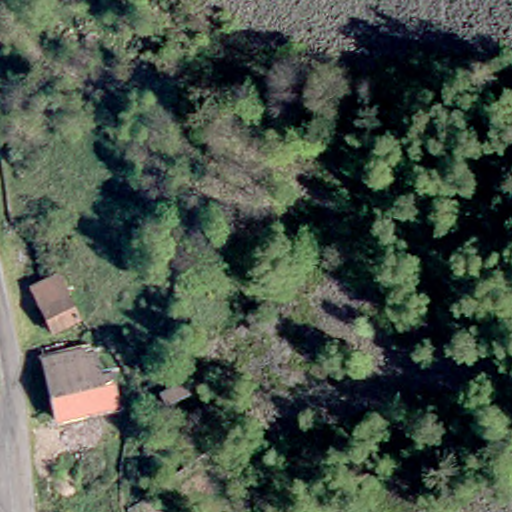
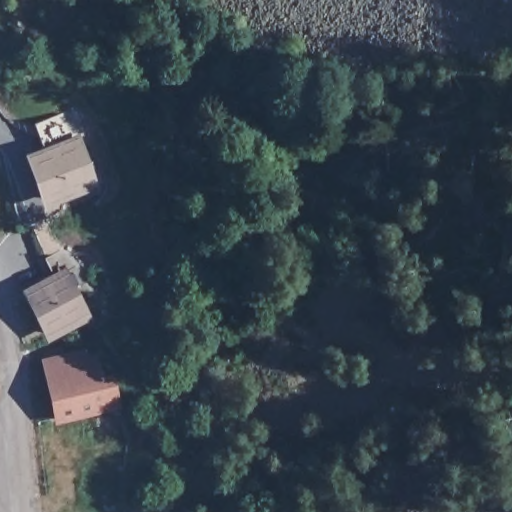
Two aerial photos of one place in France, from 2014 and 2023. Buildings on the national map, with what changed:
new [(48,154),(43,140),(75,130),(79,144),(95,189),(55,202),(49,204),(34,159),(40,157),(48,154)]
unchanged [(42,310),(35,292),(65,280),(71,297),(81,323),(52,335),(42,310)]
unchanged [(88,361),(99,358),(104,378),(117,376),(122,405),(59,420),(46,365),(86,355),(88,361)]

